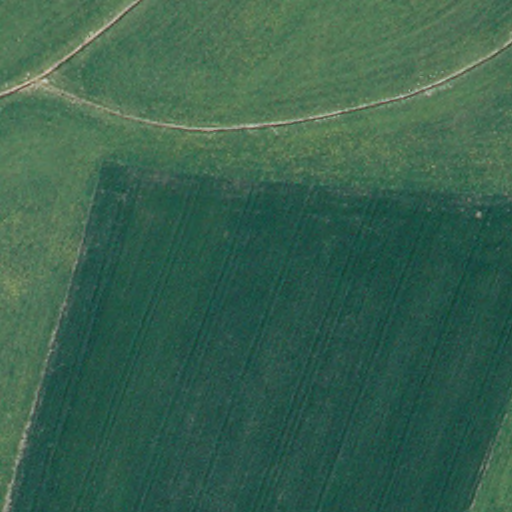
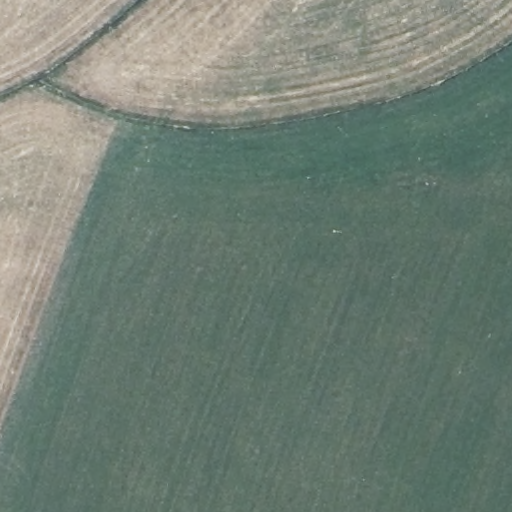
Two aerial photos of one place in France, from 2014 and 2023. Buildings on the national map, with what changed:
[]

